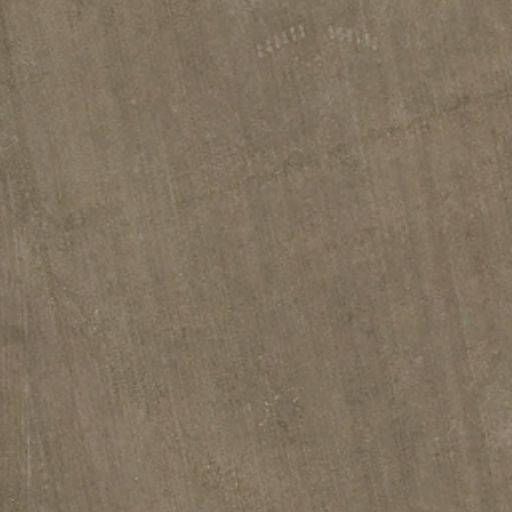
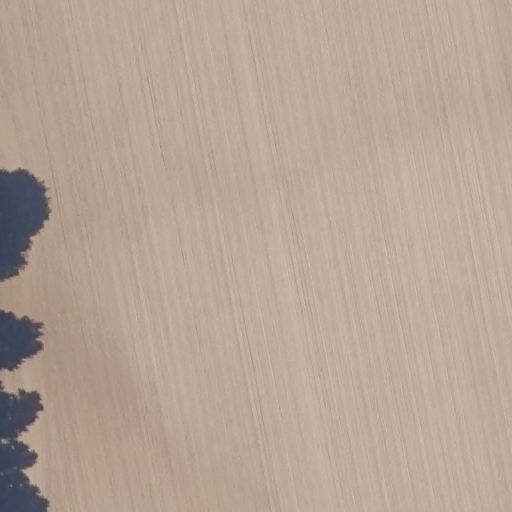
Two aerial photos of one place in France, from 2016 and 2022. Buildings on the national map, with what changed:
[]

